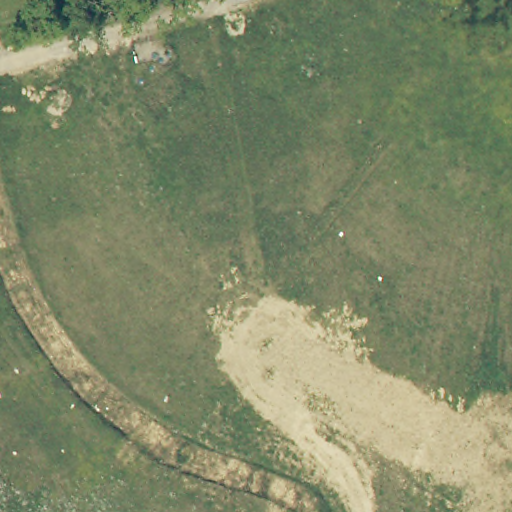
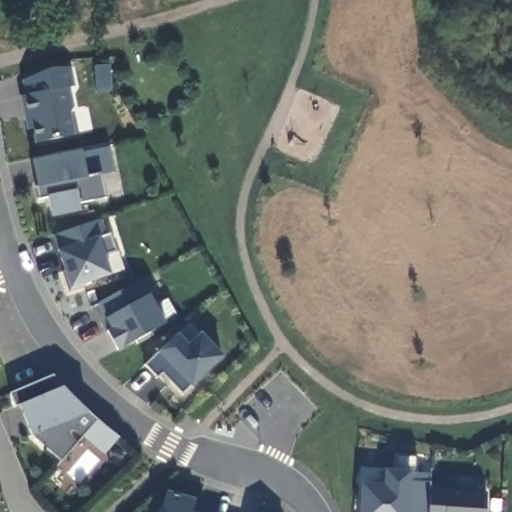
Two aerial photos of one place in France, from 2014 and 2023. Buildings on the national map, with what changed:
new [(69,66),(74,89),(69,91),(73,110),(70,115),(75,137),(35,145),(32,132),(26,132),(17,98),(25,95),(21,81),(69,66)]
new [(82,151),(110,147),(115,173),(100,176),(105,197),(79,205),(80,214),(51,219),(47,199),(39,200),(36,186),(32,161),(82,151)]
new [(103,234),(108,232),(114,250),(102,254),(109,275),(81,283),(82,286),(67,291),(60,271),(63,270),(59,257),(56,251),(51,235),(98,219),(103,234)]
new [(137,279),(146,295),(146,294),(163,323),(149,331),(150,335),(135,343),(133,340),(115,350),(105,331),(103,332),(89,306),(137,279)]
new [(159,353),(177,336),(190,324),(200,335),(222,358),(192,387),(182,395),(161,374),(156,378),(145,365),(159,353)]
new [(52,376),(64,388),(90,413),(96,420),(118,440),(104,455),(82,438),(60,462),(32,438),(19,406),(14,407),(10,395),(52,376)]
new [(383,485),(385,470),(393,470),(395,456),(417,457),(415,472),(430,473),(430,489),(487,493),(485,512),(361,512),(361,483),(383,485)]
new [(196,499),(194,512),(160,512),(162,505),(169,491),(196,499)]

